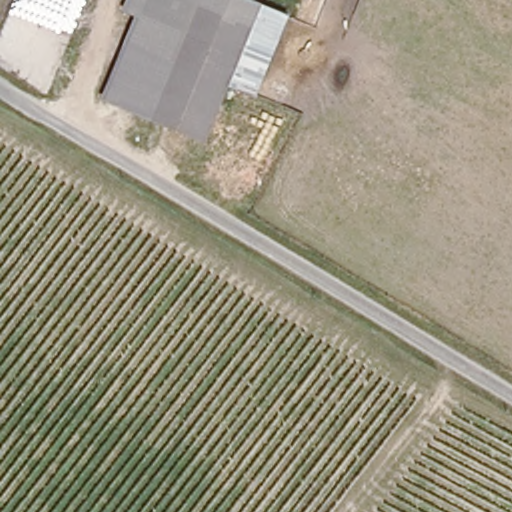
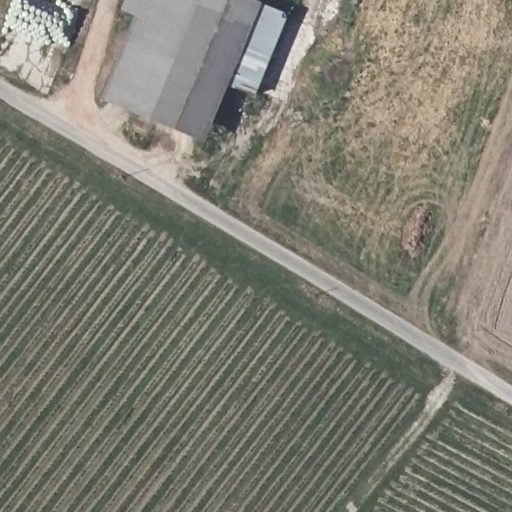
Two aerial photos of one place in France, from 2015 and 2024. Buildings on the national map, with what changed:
unchanged [(213,143),(113,102),(145,19),(124,11),(128,0),(264,0),(268,1),(213,143)]

